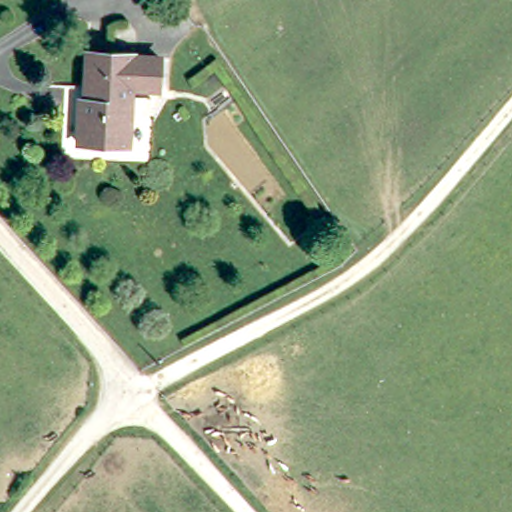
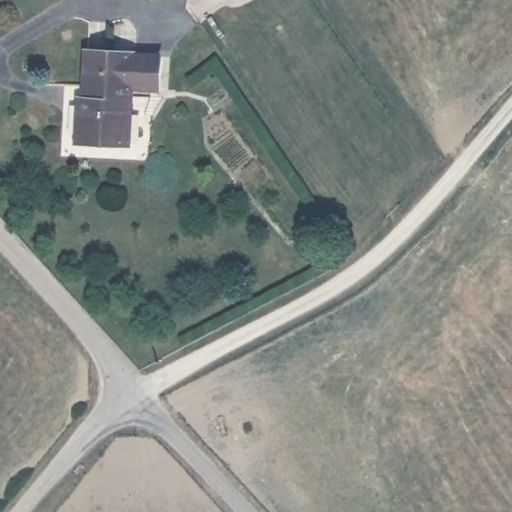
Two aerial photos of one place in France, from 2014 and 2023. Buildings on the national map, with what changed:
unchanged [(80,91),(82,48),(155,52),(153,85),(129,84),(125,140),(70,136),(72,91),(80,91)]

